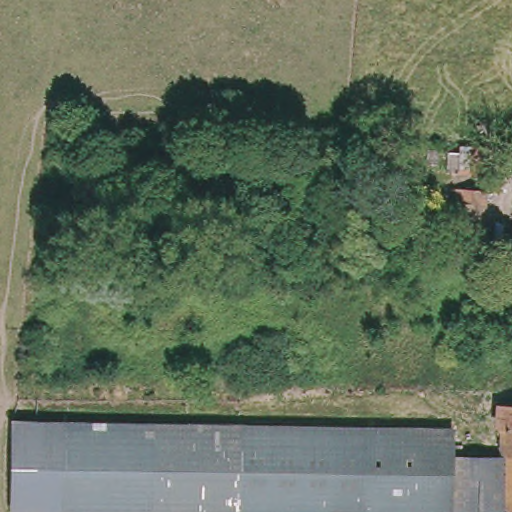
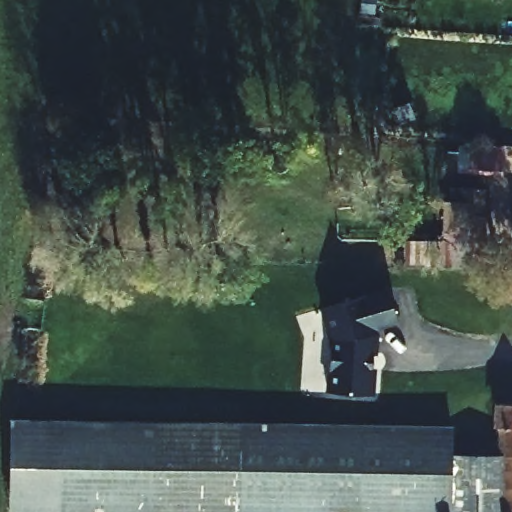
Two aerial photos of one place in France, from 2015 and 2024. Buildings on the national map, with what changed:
unchanged [(493,143),(502,143),(502,171),(456,169),(457,141),(493,143)]
unchanged [(497,192),(495,240),(482,239),(443,236),(443,194),(477,193),(497,192)]
new [(398,326),(380,331),(379,356),(368,356),(368,366),(377,367),(375,395),(325,392),(329,340),(320,310),(388,290),(398,326)]
unchanged [(497,429),(497,404),(512,404),(512,512),(502,512),(502,506),(502,454),(503,440),(503,429),(497,429)]
unchanged [(448,429),(449,455),(450,512),(8,512),(13,453),(14,438),(448,429)]
unchanged [(449,455),(502,454),(502,506),(502,512),(450,512),(449,455)]

